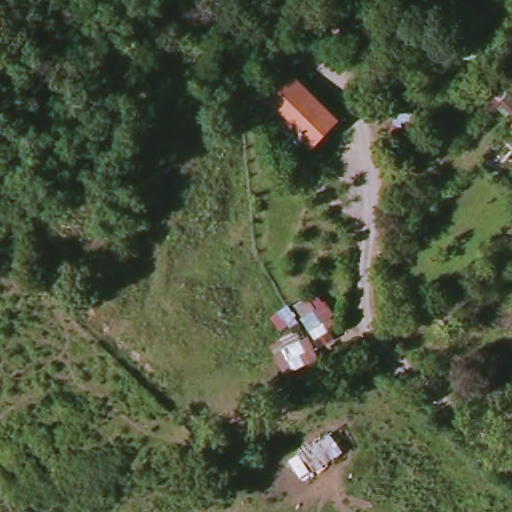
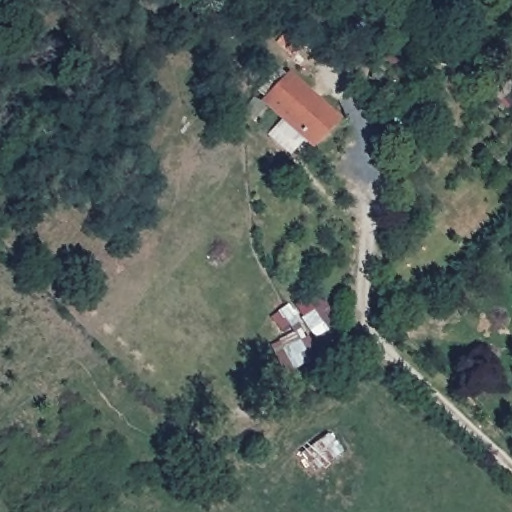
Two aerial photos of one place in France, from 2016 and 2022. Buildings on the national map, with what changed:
unchanged [(278,39),(310,5),(325,18),(294,54),(289,50),(278,39)]
unchanged [(313,144),(267,100),(290,77),(336,121),(313,144)]
unchanged [(342,452),(314,474),(301,455),(328,434),(342,452)]

